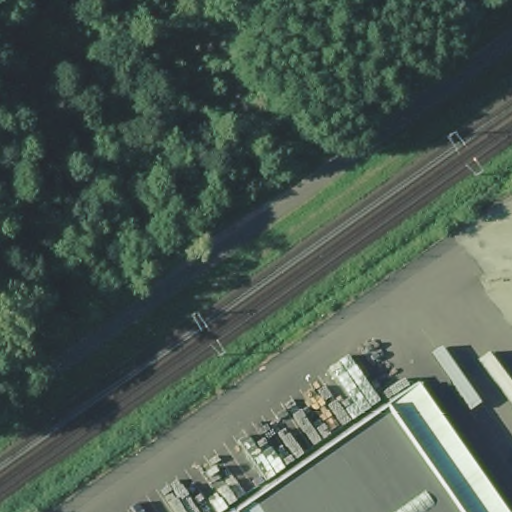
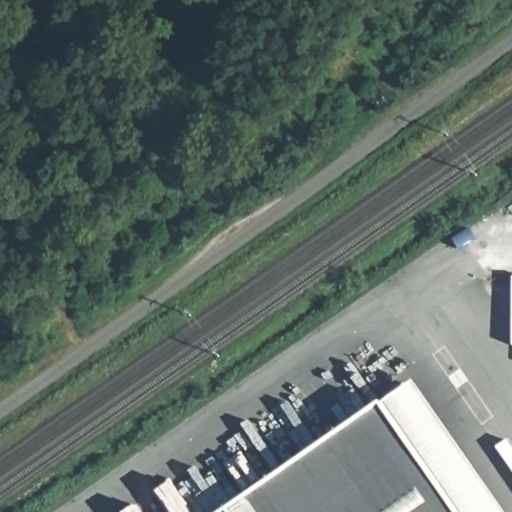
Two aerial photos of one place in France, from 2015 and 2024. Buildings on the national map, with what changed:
unchanged [(511,512),(232,512),(423,381),(511,512)]

